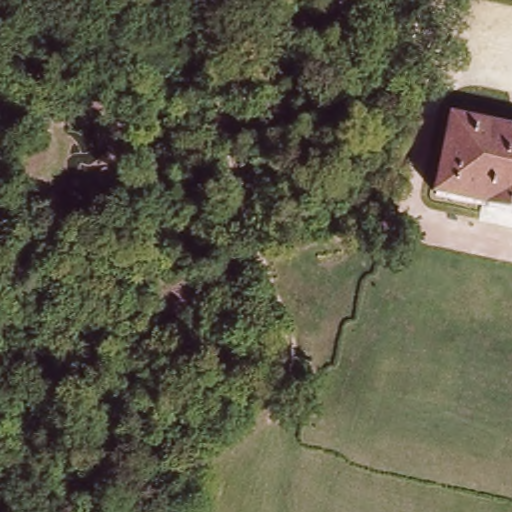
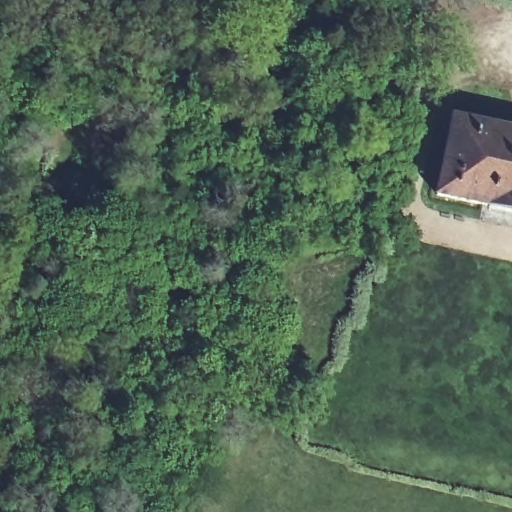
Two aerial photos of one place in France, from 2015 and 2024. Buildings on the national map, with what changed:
unchanged [(484,212),(485,205),(440,196),(457,120),(512,132),(512,219),(484,212)]

